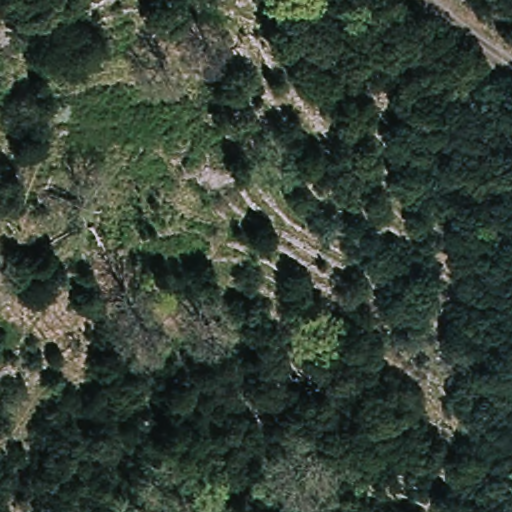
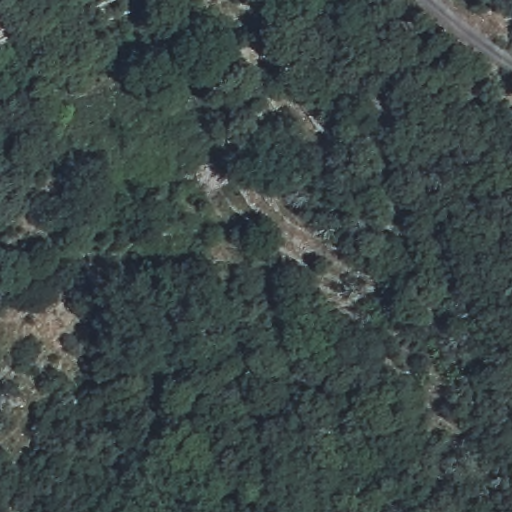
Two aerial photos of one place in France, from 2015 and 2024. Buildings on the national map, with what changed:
[]

